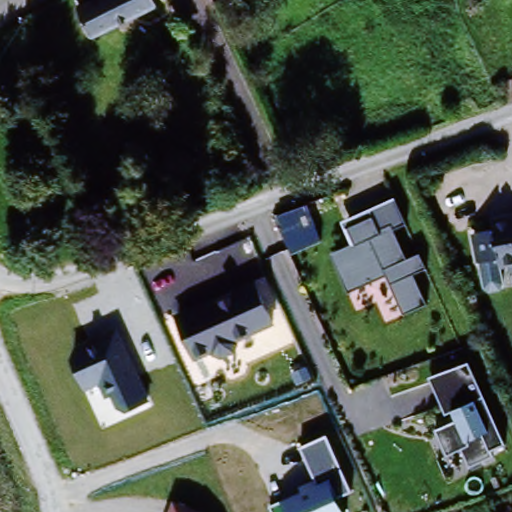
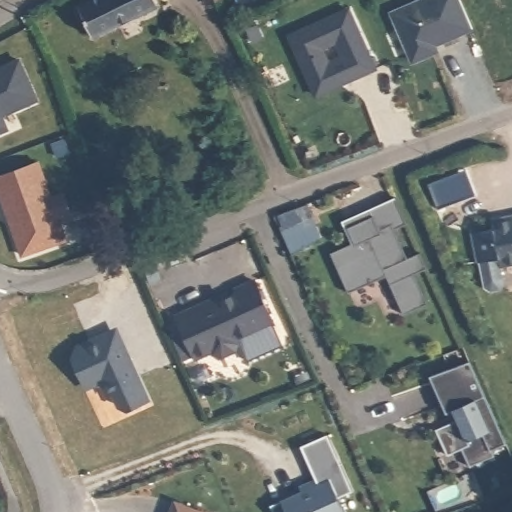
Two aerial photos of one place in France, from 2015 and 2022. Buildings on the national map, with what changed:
unchanged [(81,9),(99,0),(159,0),(161,5),(95,38),(81,9)]
unchanged [(210,6),(207,0),(222,0),(210,6)]
new [(475,31),(438,48),(440,52),(412,65),(390,12),(418,0),(460,0),(475,31)]
new [(378,70),(316,100),(287,37),(349,9),(378,70)]
new [(41,102),(4,117),(10,131),(0,135),(0,67),(20,58),(41,102)]
new [(53,199),(65,194),(73,214),(60,219),(68,241),(24,257),(0,193),(0,176),(39,162),(53,199)]
new [(467,170),(477,196),(439,210),(429,184),(467,170)]
unchanged [(373,282),(349,292),(333,254),(353,246),(343,224),(396,200),(407,222),(394,229),(407,257),(421,252),(429,271),(417,276),(430,303),(405,314),(389,282),(376,288),(373,282)]
unchanged [(276,216),(307,202),(322,238),(291,252),(276,216)]
unchanged [(500,265),(482,270),(474,242),(493,236),(491,229),(512,223),(512,269),(503,272),(500,265)]
unchanged [(276,324),(241,342),(236,353),(222,360),(212,355),(195,362),(172,316),(252,278),(276,324)]
unchanged [(120,407),(113,393),(105,397),(101,383),(84,391),(73,362),(77,347),(119,329),(150,400),(127,410),(120,407)]
unchanged [(505,446),(493,452),(494,456),(472,465),(463,446),(448,454),(438,431),(456,423),(452,415),(445,417),(430,380),(470,363),(505,446)]
unchanged [(302,492),(300,485),(317,478),(302,447),(329,437),(353,491),(338,496),(345,512),(275,512),(271,503),(302,492)]
unchanged [(202,512),(170,512),(174,500),(202,512)]

